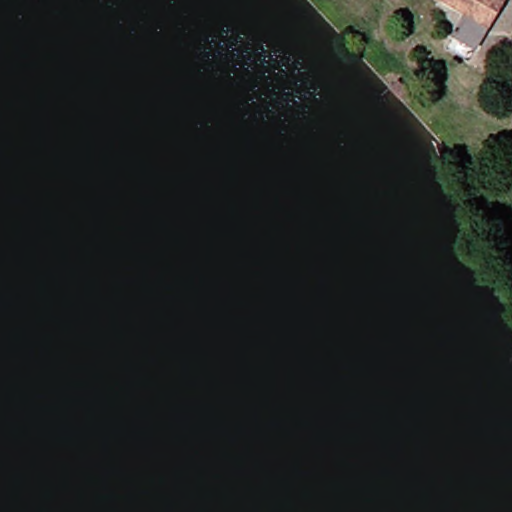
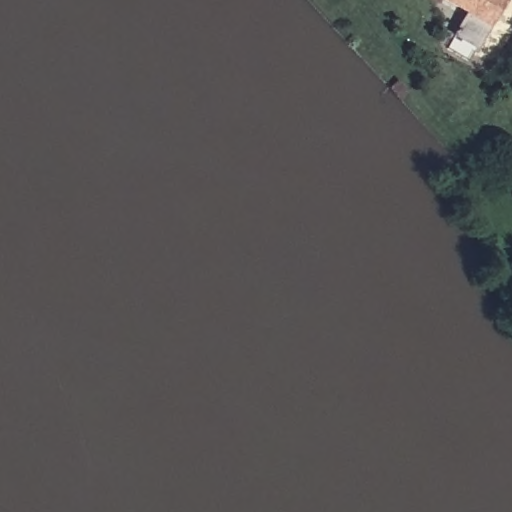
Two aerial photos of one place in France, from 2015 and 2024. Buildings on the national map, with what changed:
unchanged [(462,14),(438,0),(499,0),(471,49),(450,36),(462,14)]
unchanged [(403,98),(395,90),(400,85),(407,94),(403,98)]

